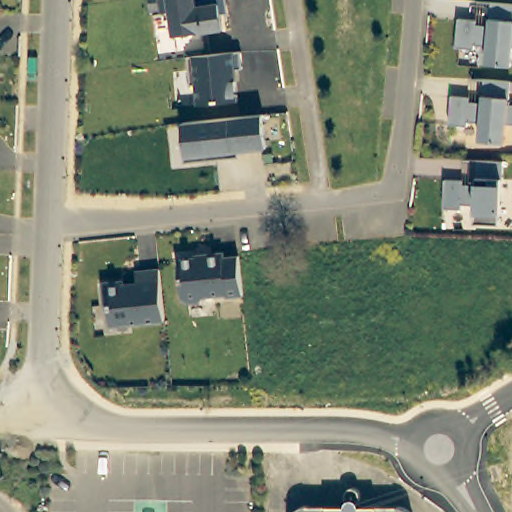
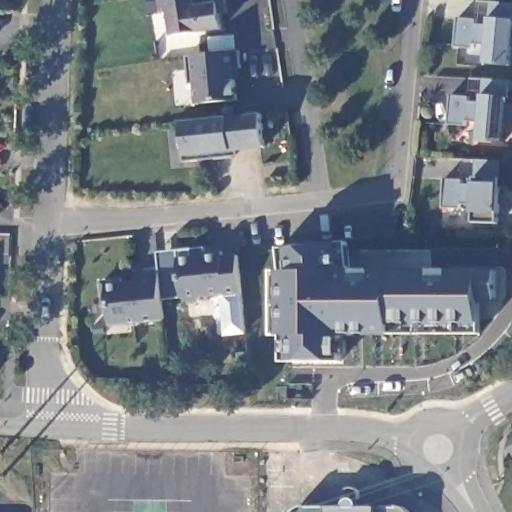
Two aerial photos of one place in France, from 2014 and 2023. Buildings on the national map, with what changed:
unchanged [(219,20),(221,35),(172,42),(169,18),(160,20),(157,1),(163,0),(225,0),(226,9),(227,19),(219,20)]
unchanged [(485,64),(487,46),(473,45),(473,50),(455,47),(457,19),(476,20),(475,25),(488,26),(491,2),(512,5),(512,47),(510,66),(485,64)]
unchanged [(240,73),(232,74),(237,105),(197,111),(194,91),(188,92),(184,64),(218,59),(238,56),(240,73)]
unchanged [(506,103),(512,104),(512,123),(504,122),(502,142),(477,140),(479,122),(466,120),(465,125),(447,123),(450,95),(468,96),(468,100),(481,102),(483,78),(491,79),(509,80),(508,97),(507,97),(506,103)]
unchanged [(263,157),(235,160),(236,167),(231,168),(231,169),(213,170),(182,172),(181,161),(183,161),(180,127),(260,120),(263,157)]
unchanged [(500,180),(499,180),(496,224),(471,222),(472,204),(459,203),(459,207),(440,206),(442,177),(461,179),(461,183),(474,185),(476,160),(502,161),(500,180)]
new [(480,298),(480,334),(390,332),(391,337),(345,338),(345,361),(290,361),(290,335),(281,335),(284,246),(342,242),(343,267),(481,270),(495,270),(495,297),(480,298)]
unchanged [(228,302),(228,300),(205,302),(201,306),(188,308),(184,304),(180,265),(206,262),(206,260),(224,257),(225,262),(240,261),(244,300),(228,302)]
unchanged [(166,323),(166,325),(113,330),(110,308),(106,308),(104,287),(124,285),(125,289),(139,287),(138,275),(161,273),(166,323)]
unchanged [(301,511),(306,510),(400,510),(404,511),(405,511),(406,512),(299,512),(301,511)]

